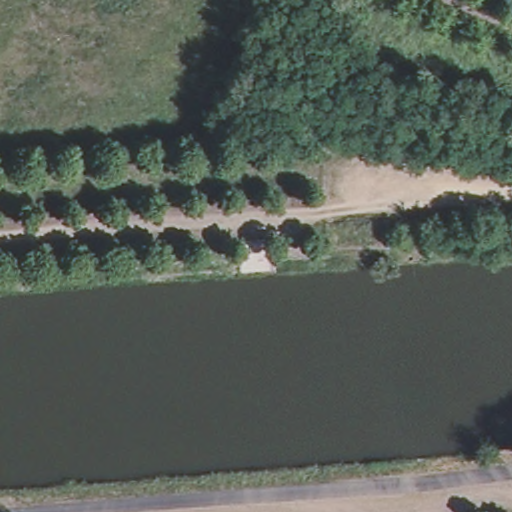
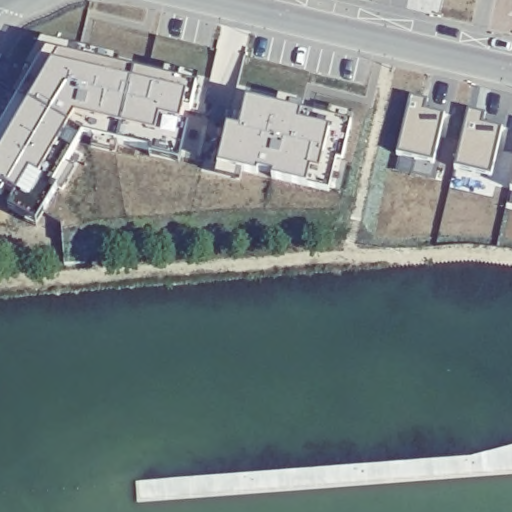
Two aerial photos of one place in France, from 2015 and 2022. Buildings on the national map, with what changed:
new [(45,41),(197,77),(179,155),(87,130),(37,215),(0,190),(0,119),(45,41)]
new [(225,118),(240,121),(247,94),(354,116),(342,156),(336,155),(328,185),(217,159),(225,118)]
new [(427,96),(423,106),(444,110),(434,159),(397,150),(411,94),(427,96)]
new [(484,109),(482,118),(502,123),(490,171),(455,162),(470,106),(484,109)]

